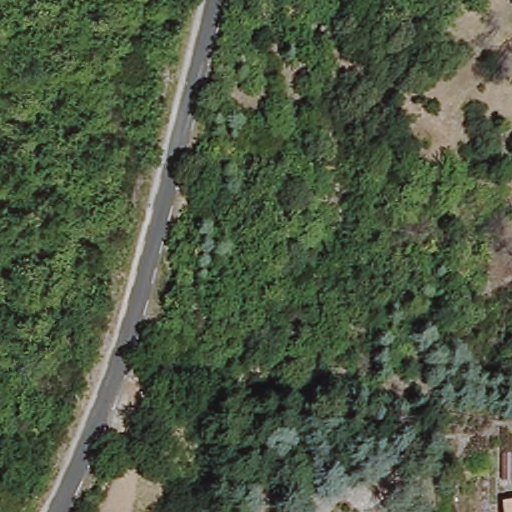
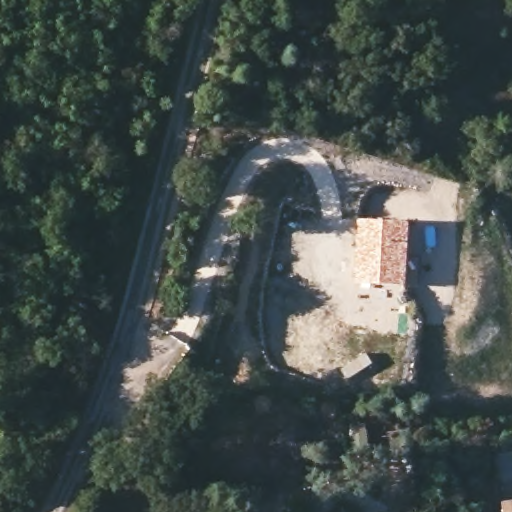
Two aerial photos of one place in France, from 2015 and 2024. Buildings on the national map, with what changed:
new [(420,286),(405,285),(357,282),(360,220),(408,222),(407,255),(422,256),(420,286)]
unchanged [(502,497),(512,498),(512,512),(502,512),(502,497)]

